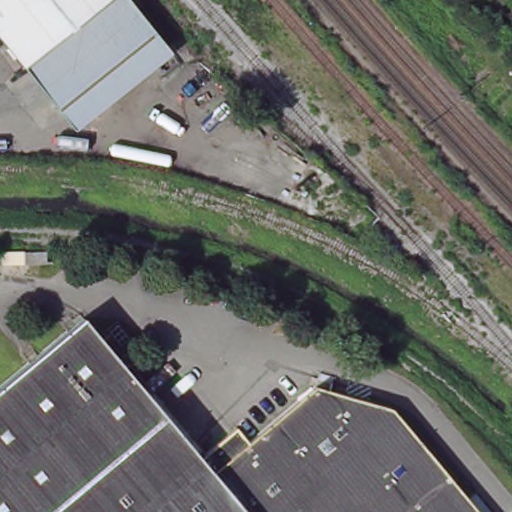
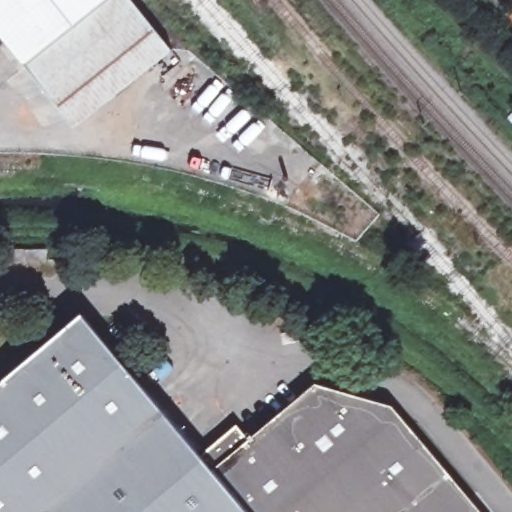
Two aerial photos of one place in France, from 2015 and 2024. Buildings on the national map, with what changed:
unchanged [(77,130),(0,34),(0,0),(131,0),(172,52),(77,130)]
unchanged [(27,265),(26,252),(46,251),(50,250),(50,253),(50,263),(27,265)]
unchanged [(77,321),(83,316),(105,341),(202,458),(231,434),(238,428),(247,439),(270,420),(315,383),(394,406),(482,512),(0,512),(0,386),(77,321)]

